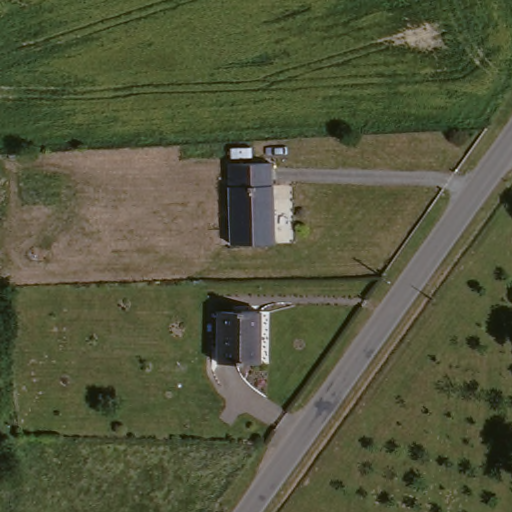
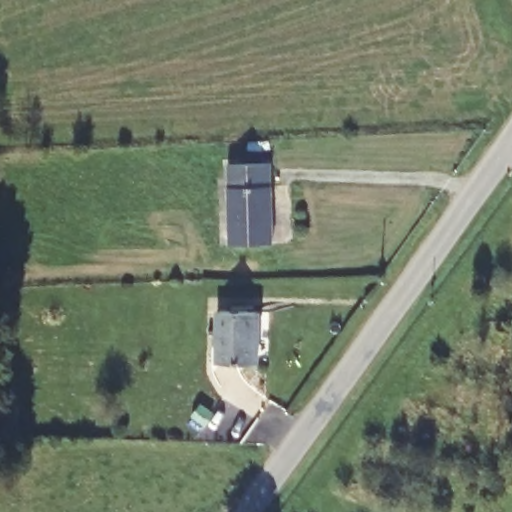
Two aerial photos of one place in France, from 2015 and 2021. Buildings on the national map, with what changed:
unchanged [(271,164),(270,244),(229,244),(229,165),(271,164)]
unchanged [(24,328),(14,330),(10,306),(21,304),(24,328)]
unchanged [(256,311),(257,361),(218,361),(217,311),(256,311)]

